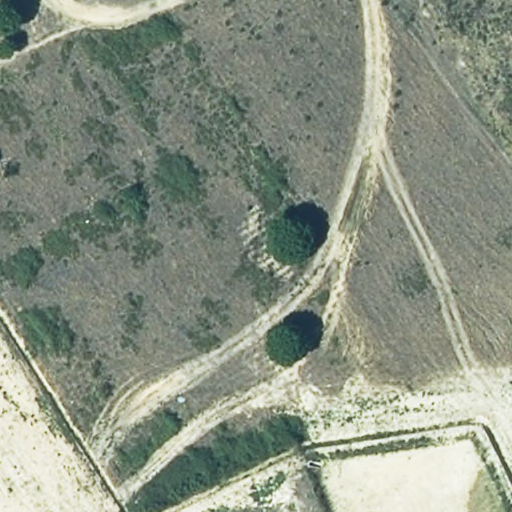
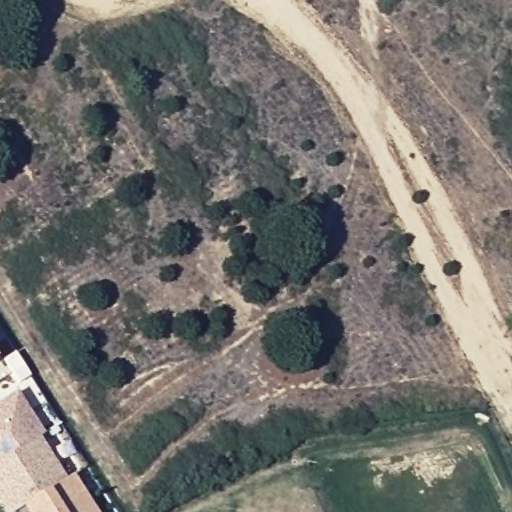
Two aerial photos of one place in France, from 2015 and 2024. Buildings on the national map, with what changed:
new [(17,390),(43,433),(39,437),(65,478),(72,474),(96,512),(4,512),(0,505),(0,400),(17,390)]

